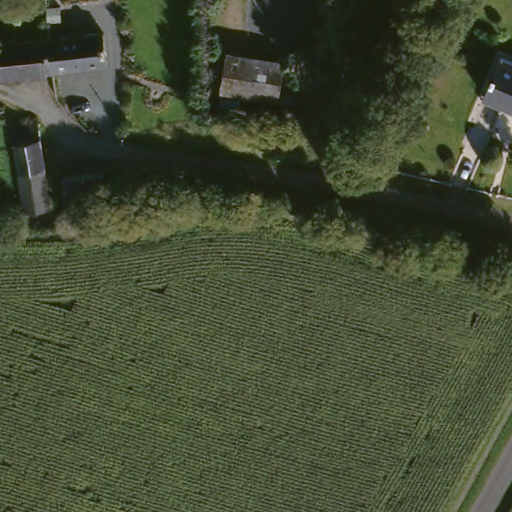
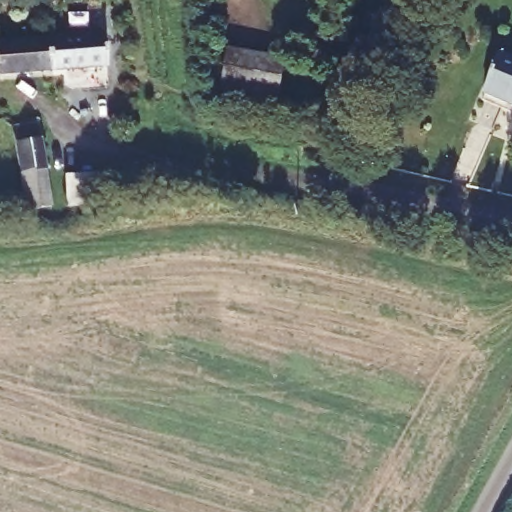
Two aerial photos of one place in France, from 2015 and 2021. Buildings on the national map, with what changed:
unchanged [(66,27),(68,27),(69,44),(77,44),(79,44),(102,41),(102,51),(113,50),(114,64),(103,65),(103,71),(47,75),(44,29),(66,27)]
unchanged [(19,50),(19,31),(44,29),(47,75),(48,83),(0,87),(0,52),(19,50)]
unchanged [(396,42),(415,53),(404,75),(385,65),(396,42)]
unchanged [(294,69),(285,106),(217,91),(225,55),(294,69)]
unchanged [(512,113),(477,102),(490,60),(512,66),(512,113)]
unchanged [(17,214),(13,180),(7,134),(34,131),(40,177),(45,210),(17,214)]
unchanged [(99,177),(100,211),(61,211),(61,180),(99,177)]

